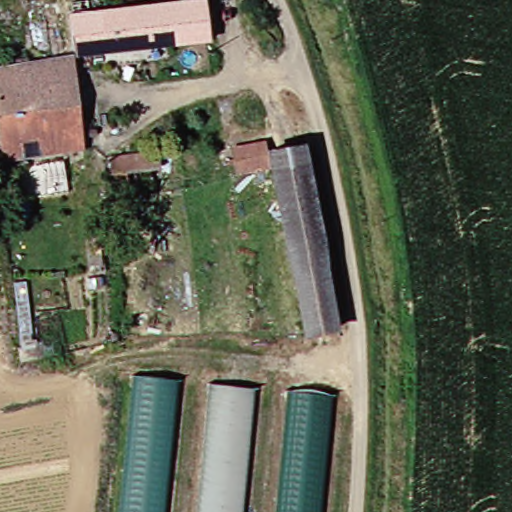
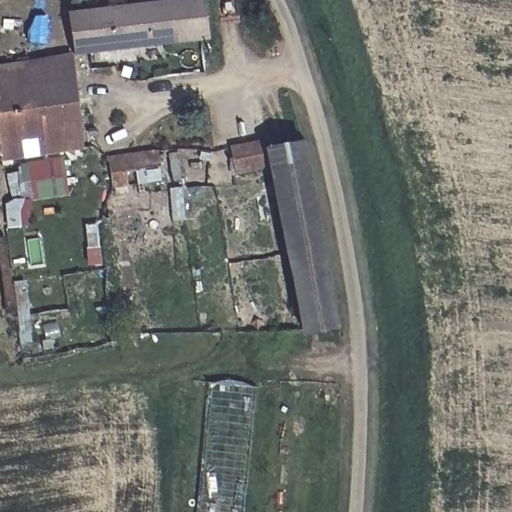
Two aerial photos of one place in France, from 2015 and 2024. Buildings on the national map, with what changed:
unchanged [(75,11),(74,0),(92,0),(92,5),(149,0),(207,0),(211,35),(77,47),(68,47),(64,11),(75,11)]
unchanged [(83,146),(42,149),(41,132),(20,134),(19,152),(3,154),(2,147),(0,147),(0,137),(0,55),(77,53),(83,146)]
unchanged [(238,171),(234,149),(268,146),(271,167),(238,171)]
unchanged [(336,327),(305,332),(272,150),(305,146),(336,327)]
unchanged [(120,171),(120,185),(107,186),(103,156),(154,151),(155,167),(120,171)]
new [(69,196),(35,202),(28,227),(6,230),(4,206),(12,201),(5,175),(20,172),(18,165),(64,157),(69,196)]
demolished [(134,373),(180,379),(167,512),(120,512),(134,373)]
unchanged [(258,382),(246,512),(199,512),(211,382),(258,382)]
demolished [(332,393),(320,512),(279,512),(291,390),(332,393)]

